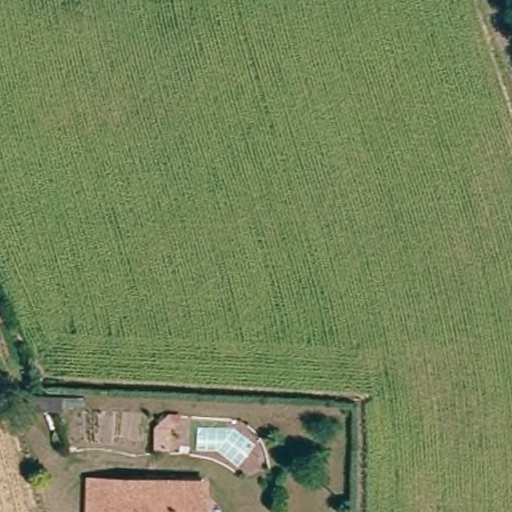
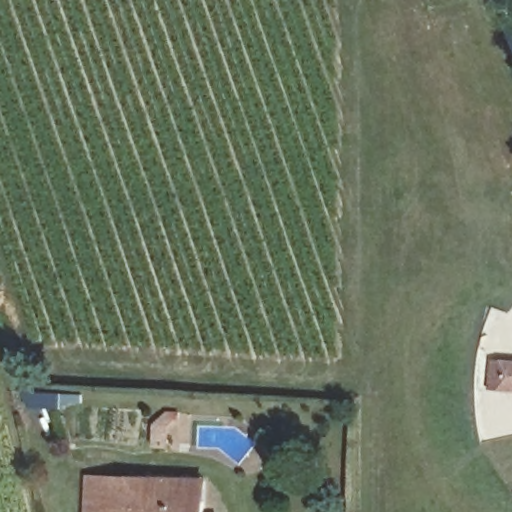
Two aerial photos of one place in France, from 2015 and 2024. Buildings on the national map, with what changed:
new [(512,359),(512,390),(489,388),(492,357),(512,359)]
unchanged [(65,390),(72,405),(59,408),(51,387),(65,390)]
unchanged [(169,444),(170,436),(171,421),(185,412),(185,409),(197,411),(197,421),(190,420),(182,427),(182,437),(181,445),(169,444)]
unchanged [(102,477),(209,486),(209,512),(82,512),(85,475),(102,477)]

